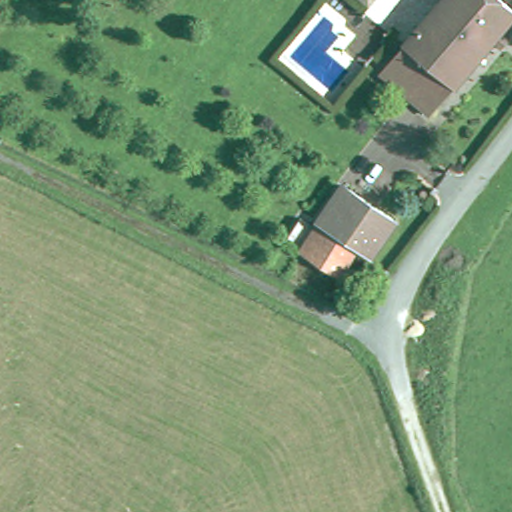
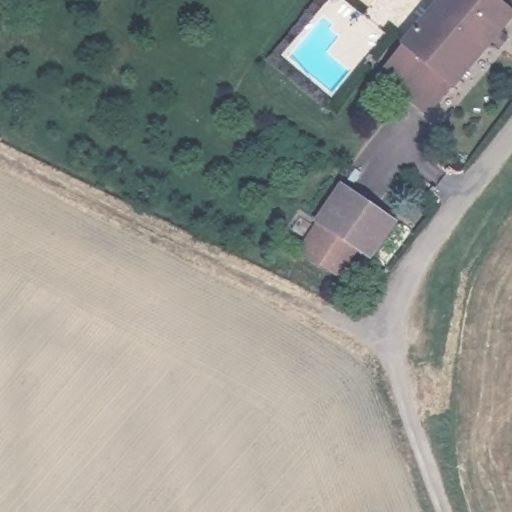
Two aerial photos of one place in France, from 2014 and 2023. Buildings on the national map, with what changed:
unchanged [(502,29),(508,34),(502,42),(495,36),(456,83),(451,80),(428,107),(386,73),(410,47),(405,42),(440,0),(504,0),(512,6),(512,17),(502,29)]
unchanged [(323,229),(314,222),(333,196),(344,180),(398,219),(372,257),(359,247),(339,274),(324,265),(306,253),(323,229)]

